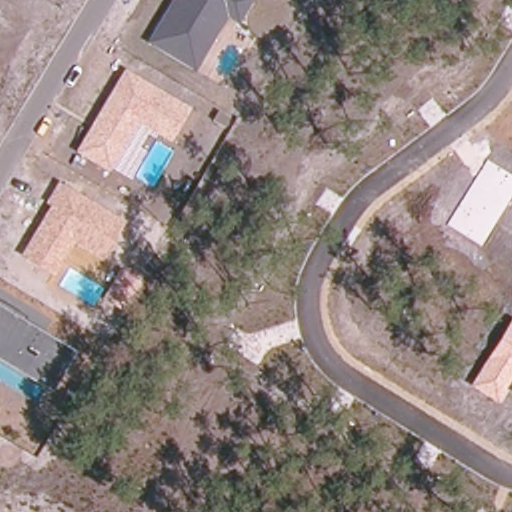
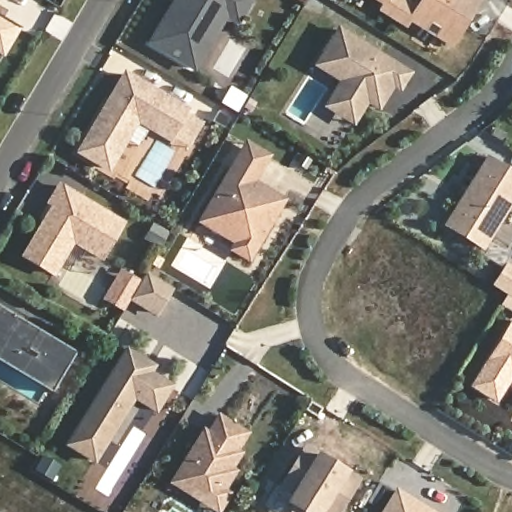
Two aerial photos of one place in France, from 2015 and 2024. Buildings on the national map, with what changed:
unchanged [(195,73),(146,43),(172,0),(253,0),(238,25),(227,19),(195,73)]
new [(374,0),(404,0),(416,6),(420,0),(483,0),(453,47),(411,22),(407,29),(378,11),(382,5),(374,0)]
new [(0,18),(0,10),(3,12),(0,18)]
new [(16,28),(0,54),(0,19),(16,28)]
new [(412,73),(401,94),(393,90),(380,112),(367,105),(354,126),(323,107),(337,82),(313,67),(338,26),(412,73)]
unchanged [(171,142),(137,122),(109,172),(75,153),(124,70),(189,108),(171,142)]
new [(256,181),(286,199),(249,263),(227,249),(231,243),(197,223),(245,139),(272,155),(256,181)]
unchanged [(447,224),(487,159),(512,174),(512,197),(482,246),(447,224)]
unchanged [(102,261),(72,245),(54,277),(20,257),(51,206),(45,202),(57,182),(126,222),(102,261)]
new [(512,273),(512,296),(490,283),(500,265),(512,273)]
new [(117,271),(126,276),(135,281),(119,308),(102,297),(112,280),(117,271)]
new [(174,289),(156,318),(130,303),(146,272),(174,289)]
unchanged [(52,393),(0,362),(0,304),(25,318),(23,321),(75,352),(52,393)]
unchanged [(497,403),(470,386),(512,319),(512,320),(512,377),(497,403)]
new [(153,372),(175,385),(156,414),(135,401),(95,464),(65,446),(126,346),(157,366),(153,372)]
new [(243,453),(234,468),(239,471),(227,489),(232,493),(220,512),(214,512),(167,483),(202,428),(207,432),(217,414),(250,432),(239,451),(243,453)]
new [(304,444),(317,452),(348,470),(362,479),(339,512),(322,512),(322,511),(292,493),(291,496),(277,488),(304,444)]
new [(380,512),(395,487),(433,512),(380,512)]

